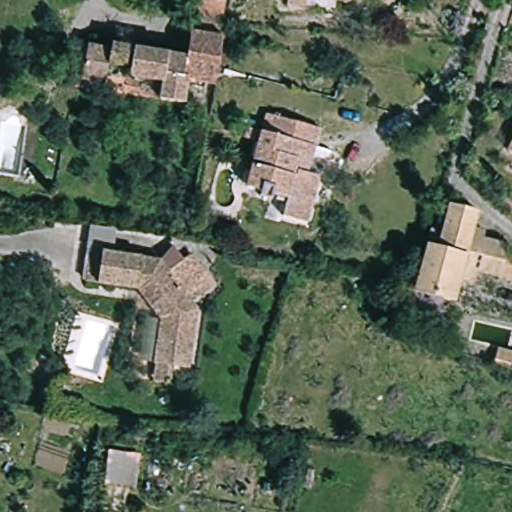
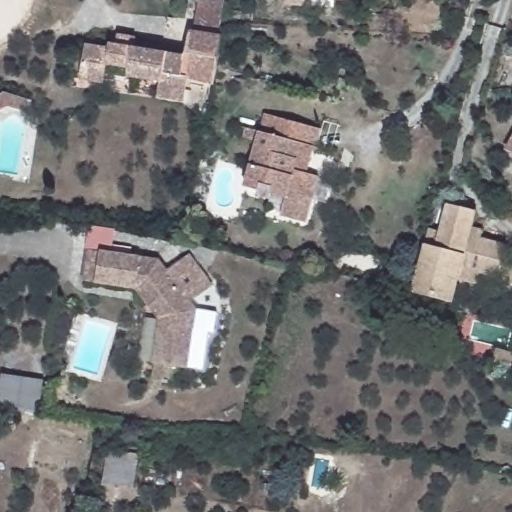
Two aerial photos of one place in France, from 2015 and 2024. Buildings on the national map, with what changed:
unchanged [(285,0),(346,0),(345,4),(285,0)]
unchanged [(189,28),(223,36),(214,82),(188,76),(183,98),(160,93),(163,77),(130,71),(126,66),(127,63),(107,59),(103,74),(80,69),(86,37),(109,42),(110,37),(116,39),(118,30),(135,33),(133,42),(183,54),(189,28)]
unchanged [(28,113),(8,107),(0,111),(0,95),(7,92),(31,101),(28,113)]
unchanged [(262,195),(264,189),(247,184),(263,130),(268,112),(278,114),(311,124),(307,137),(318,141),(310,168),(315,170),(307,198),(305,207),(274,197),(262,195)]
unchanged [(512,147),(512,150),(511,149),(512,147)]
unchanged [(411,288),(428,232),(442,237),(451,207),(478,214),(473,230),(485,233),(483,242),(508,247),(507,253),(512,254),(512,280),(502,277),(502,276),(482,271),(479,283),(459,279),(452,301),(411,288)]
unchanged [(181,258),(189,252),(212,284),(194,302),(158,259),(170,246),(181,258)]
unchanged [(194,302),(199,307),(190,365),(153,359),(160,317),(135,288),(97,282),(85,280),(90,247),(102,250),(158,259),(194,302)]
unchanged [(512,369),(490,363),(493,345),(512,349),(512,369)]
new [(45,381),(38,413),(0,407),(0,391),(2,375),(45,381)]

